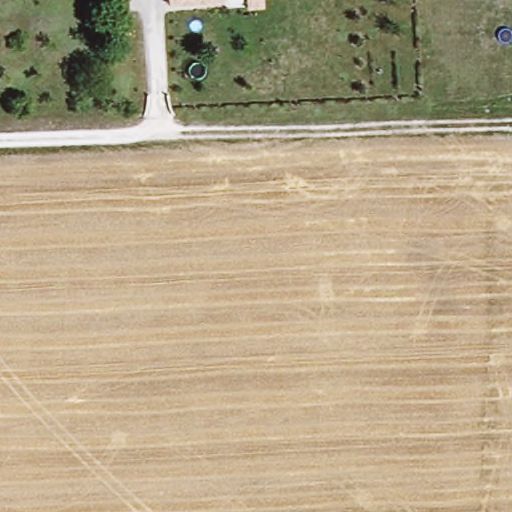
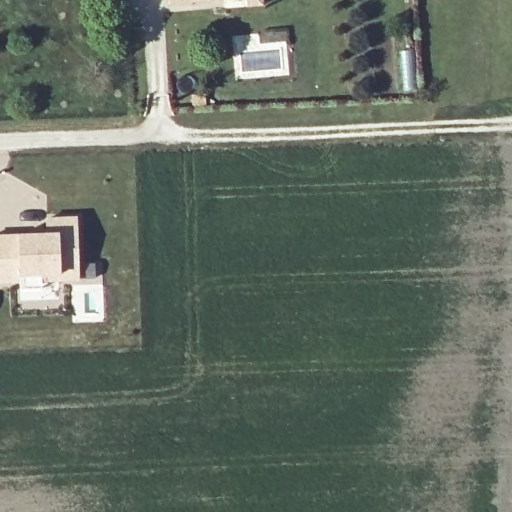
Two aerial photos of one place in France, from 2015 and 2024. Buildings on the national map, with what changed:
unchanged [(209,15),(164,18),(163,0),(258,0),(260,22),(244,23),(242,7),(220,9),(220,14),(209,15)]
new [(0,236),(18,235),(47,234),(47,218),(76,216),(78,280),(43,283),(41,275),(20,275),(19,282),(0,283),(0,236)]

